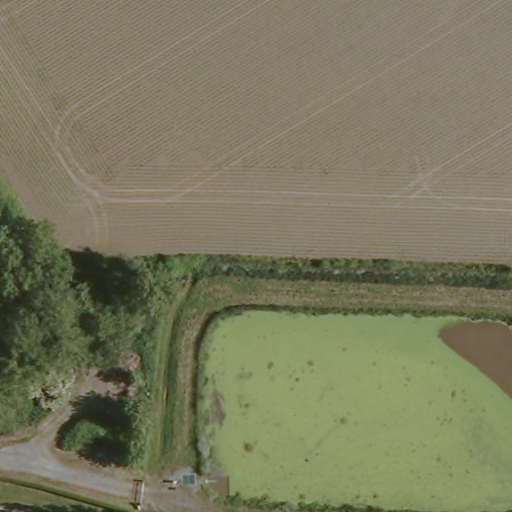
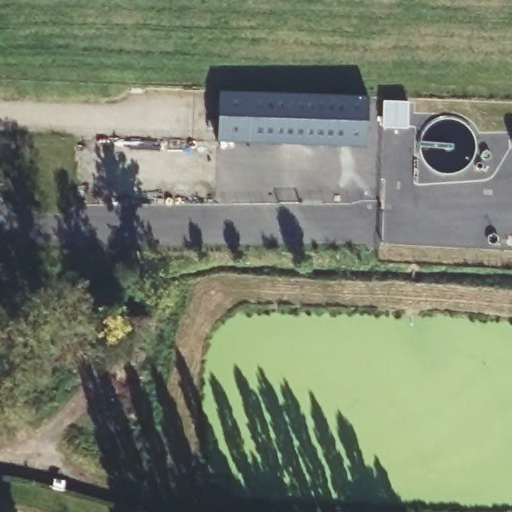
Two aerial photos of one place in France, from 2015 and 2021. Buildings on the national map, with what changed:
new [(219,91),(369,96),(367,146),(217,141),(219,91)]

